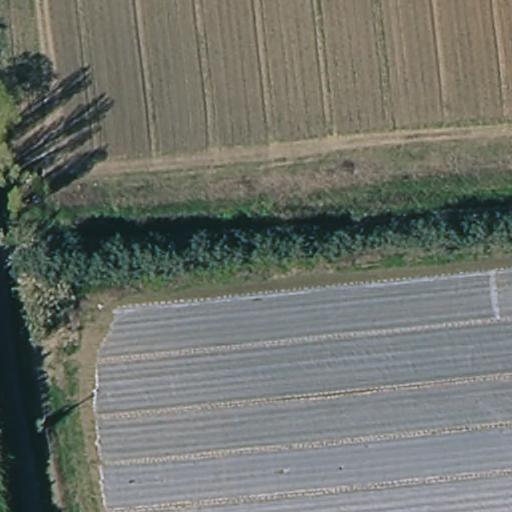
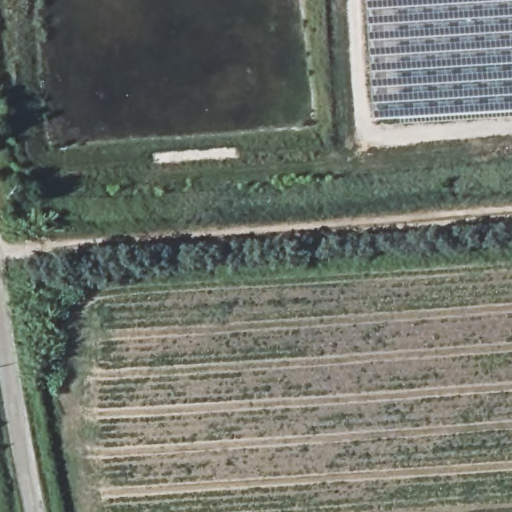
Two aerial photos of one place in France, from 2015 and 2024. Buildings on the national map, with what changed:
new [(369,0),(512,0),(512,114),(376,122),(369,0)]
unchanged [(23,195),(42,194),(42,202),(23,204),(23,195)]

